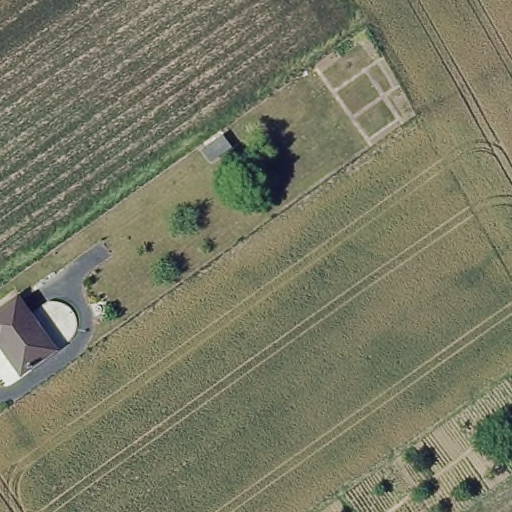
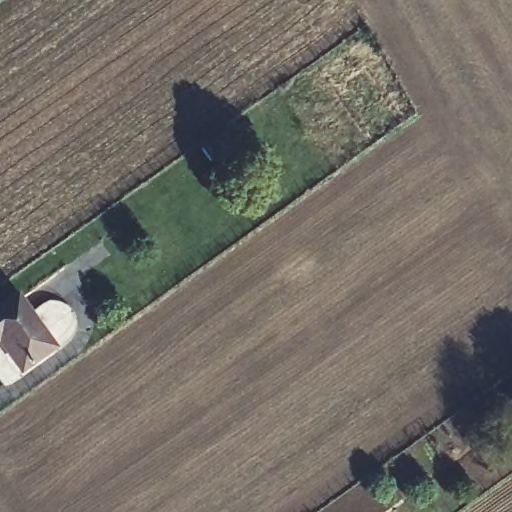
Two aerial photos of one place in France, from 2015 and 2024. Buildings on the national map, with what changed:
unchanged [(229,130),(241,145),(211,167),(199,150),(229,130)]
unchanged [(23,366),(0,333),(0,334),(0,296),(16,285),(55,345),(23,366)]

